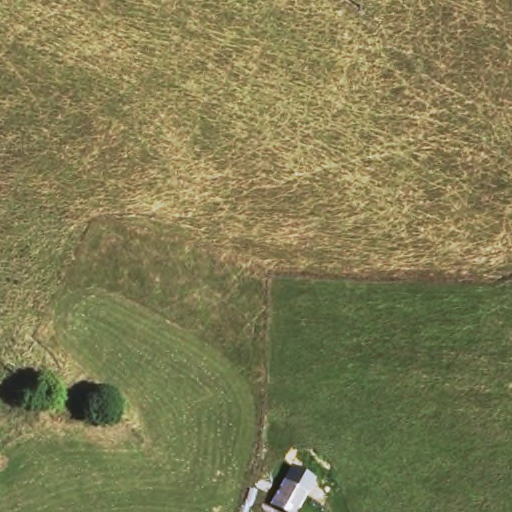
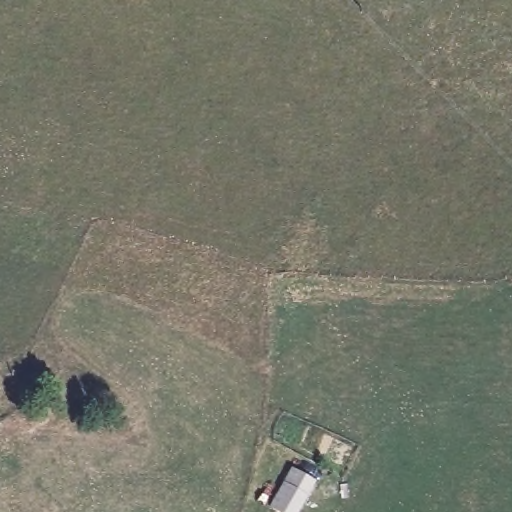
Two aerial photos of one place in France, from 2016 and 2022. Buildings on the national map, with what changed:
unchanged [(300,512),(274,512),(269,509),(292,467),(316,482),(300,512)]

